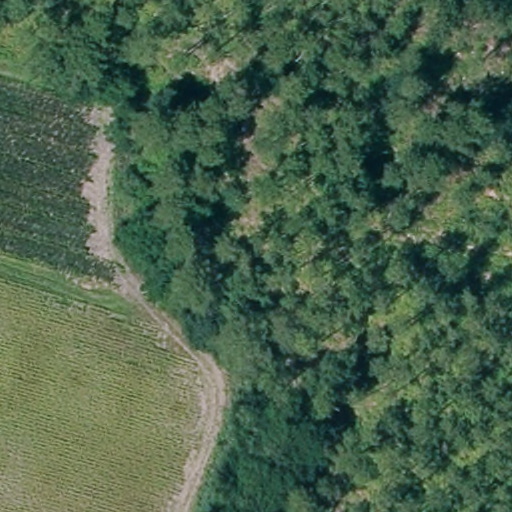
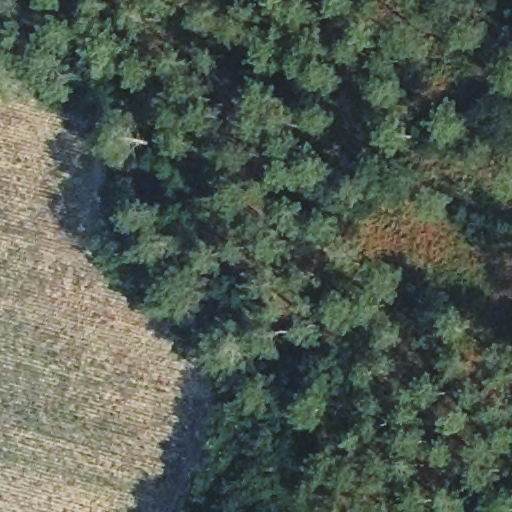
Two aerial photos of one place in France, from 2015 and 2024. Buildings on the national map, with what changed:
[]

